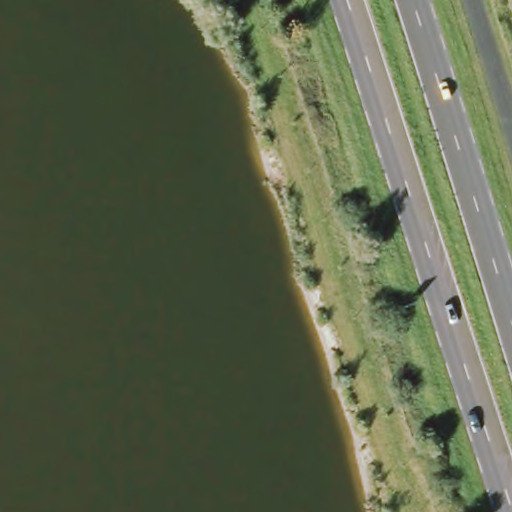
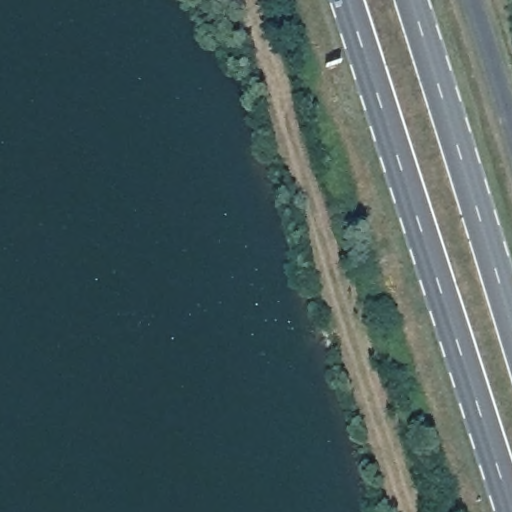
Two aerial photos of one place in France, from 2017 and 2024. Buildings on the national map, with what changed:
[]

